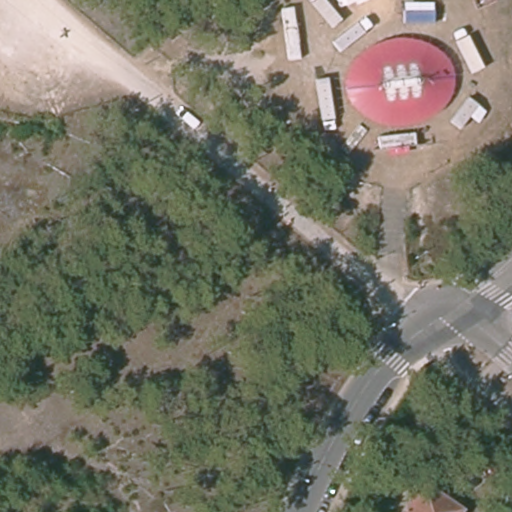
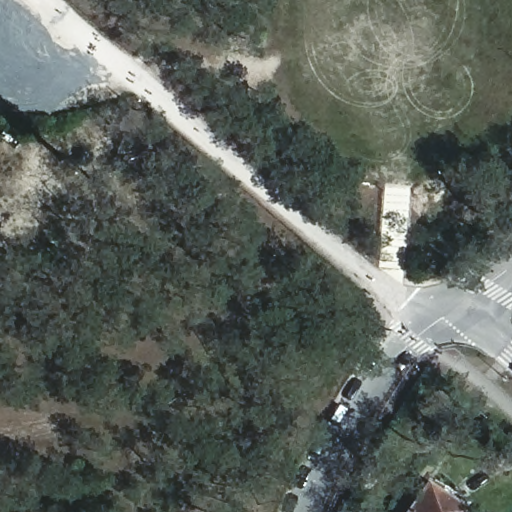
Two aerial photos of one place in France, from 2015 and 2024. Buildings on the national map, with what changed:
unchanged [(427,488),(438,497),(445,488),(470,507),(465,512),(408,512),(427,488)]

